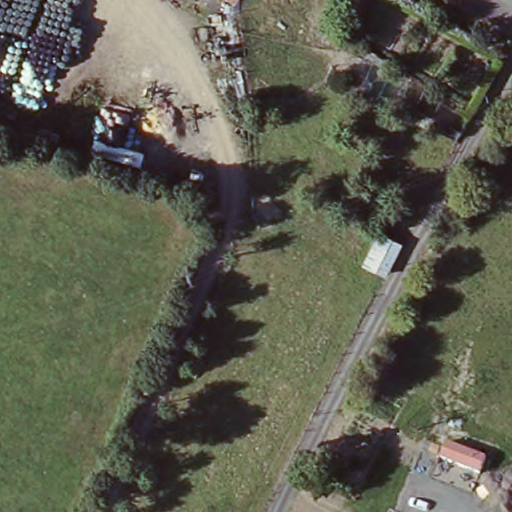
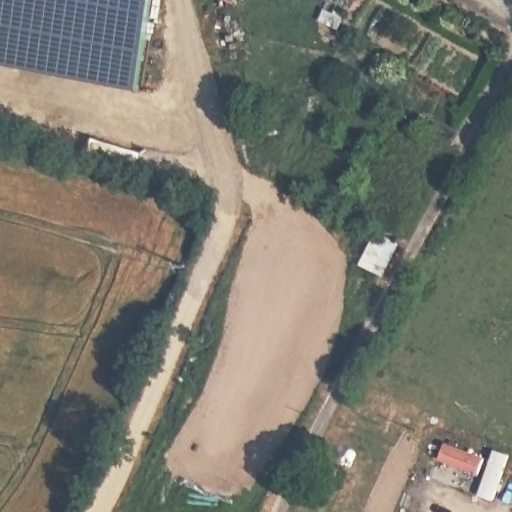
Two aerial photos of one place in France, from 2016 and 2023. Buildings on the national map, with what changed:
new [(0,62),(0,0),(154,0),(137,89),(0,62)]
new [(227,0),(236,0),(235,4),(227,0)]
unchanged [(377,227),(403,240),(385,274),(359,261),(377,227)]
new [(485,456),(479,472),(440,457),(446,441),(485,456)]

